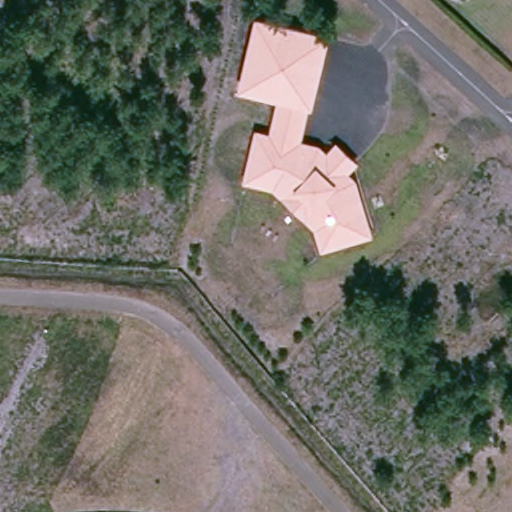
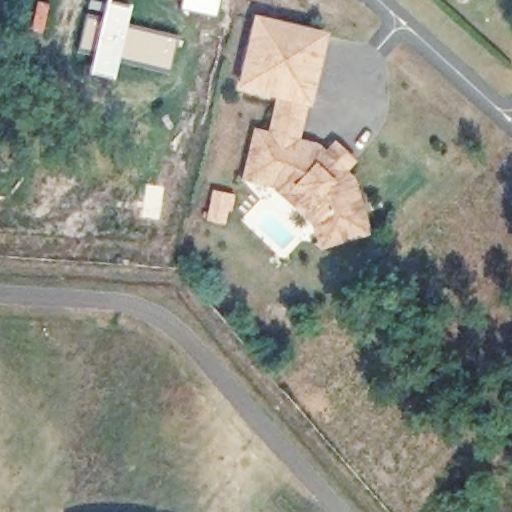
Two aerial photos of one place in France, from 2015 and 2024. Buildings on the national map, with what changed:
new [(89,0),(101,0),(104,0),(131,6),(127,24),(119,61),(114,80),(87,74),(92,55),(77,52),(89,0)]
new [(220,0),(216,18),(180,9),(182,0),(220,0)]
unchanged [(256,15),(330,34),(313,106),(308,104),(304,136),(320,141),(327,148),(336,140),(358,161),(349,170),(357,176),(373,234),(321,252),(308,219),(275,187),(245,179),(255,129),(270,131),(276,99),(237,90),(256,15)]
new [(127,24),(179,36),(170,73),(119,61),(127,24)]

